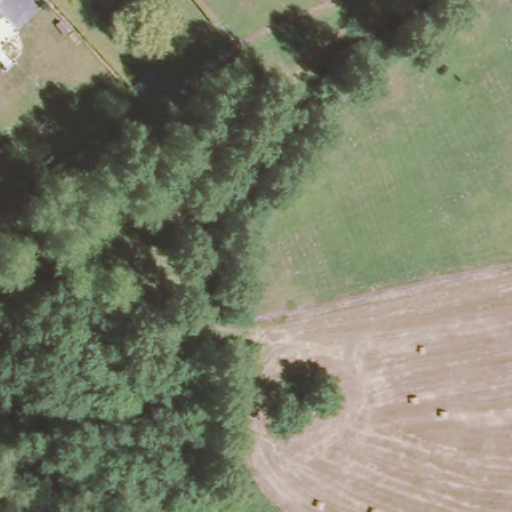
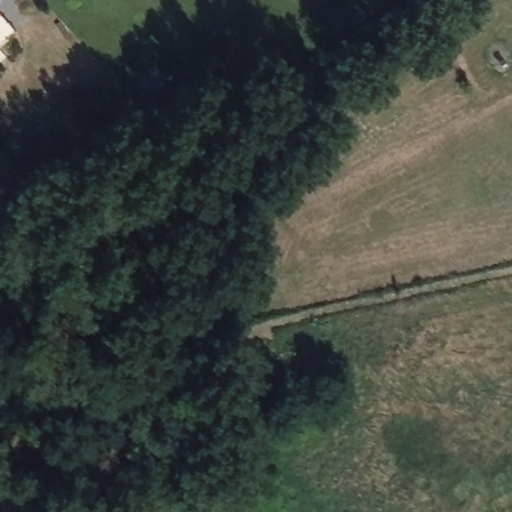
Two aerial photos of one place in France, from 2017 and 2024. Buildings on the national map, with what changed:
unchanged [(0,27),(0,4),(12,16),(0,27)]

